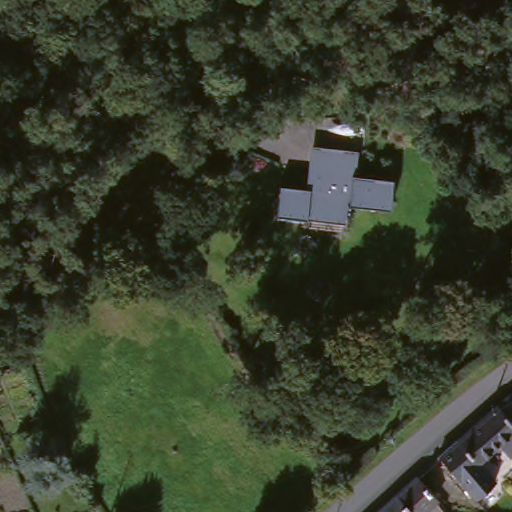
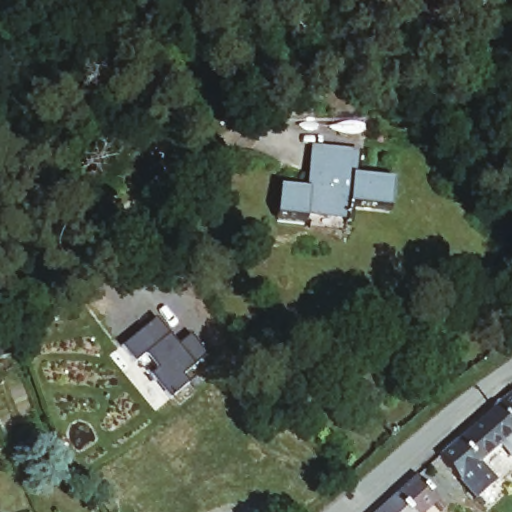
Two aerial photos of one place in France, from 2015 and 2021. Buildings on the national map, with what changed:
unchanged [(313,147),(354,150),(351,173),(351,177),(310,174),(313,147)]
unchanged [(351,177),(351,173),(395,176),(393,204),(349,200),(346,214),(277,209),(278,187),(309,189),(310,174),(351,177)]
new [(149,375),(157,369),(144,353),(133,362),(121,347),(156,319),(176,344),(189,334),(206,356),(181,377),(187,384),(169,399),(149,375)]
unchanged [(4,342),(2,335),(23,326),(24,325),(27,333),(34,351),(33,351),(11,361),(4,342)]
unchanged [(512,462),(508,466),(489,445),(474,458),(495,479),(472,499),(438,458),(508,396),(512,393),(512,462)]
unchanged [(410,478),(437,508),(433,512),(426,512),(420,506),(413,512),(371,512),(410,478)]

